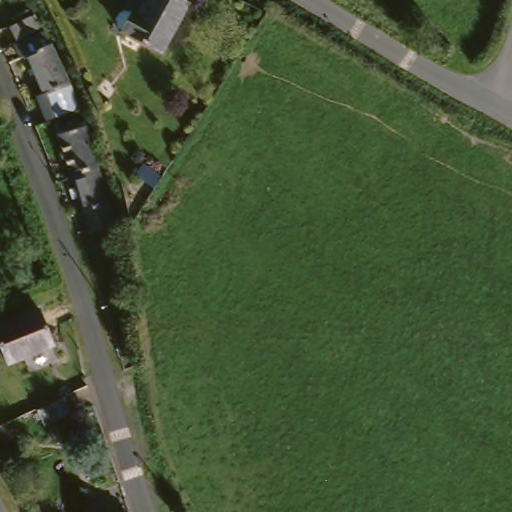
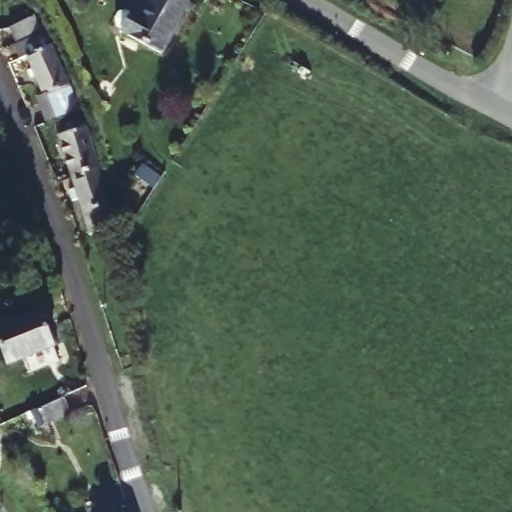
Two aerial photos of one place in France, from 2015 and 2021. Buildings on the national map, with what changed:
unchanged [(161,51),(122,28),(131,13),(140,18),(150,0),(176,0),(186,5),(161,51)]
unchanged [(28,12),(34,24),(11,35),(5,24),(28,12)]
unchanged [(44,39),(49,40),(74,86),(83,108),(76,111),(53,120),(46,123),(36,101),(42,99),(39,91),(11,43),(39,29),(44,39)]
unchanged [(53,120),(76,111),(83,122),(98,164),(95,165),(71,175),(53,120)]
unchanged [(115,222),(97,228),(91,209),(84,212),(71,175),(95,165),(115,222)]
unchanged [(51,342),(9,357),(0,337),(0,325),(38,309),(51,342)]
unchanged [(48,396),(56,414),(27,427),(18,409),(48,396)]
unchanged [(106,511),(107,512),(103,512),(106,511)]

